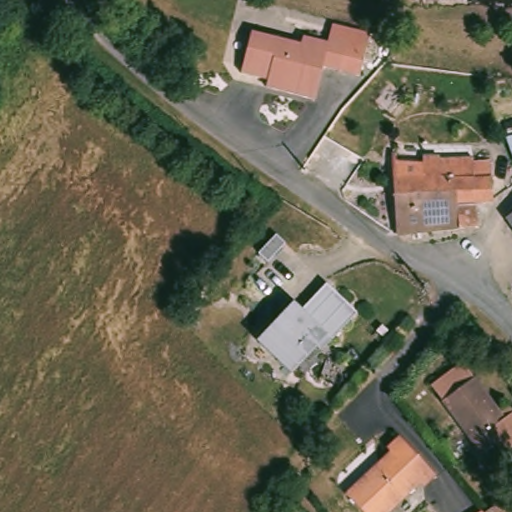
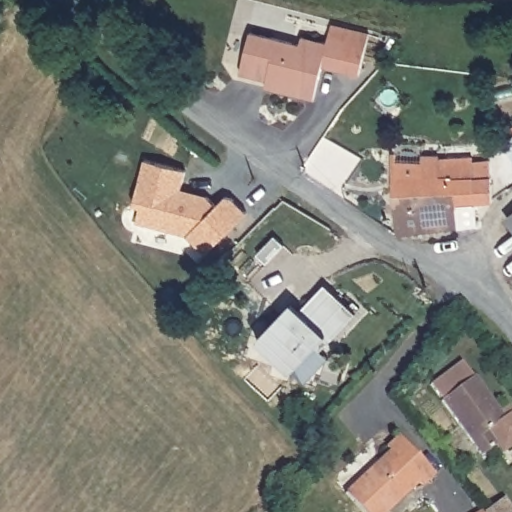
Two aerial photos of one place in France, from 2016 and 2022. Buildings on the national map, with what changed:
unchanged [(304,35),(331,41),(333,32),(337,24),(370,32),(361,71),(342,67),(326,63),(316,99),(272,87),(274,78),(246,71),(255,32),(301,44),(304,35)]
new [(507,136),(504,130),(512,128),(512,152),(507,136)]
unchanged [(478,226),(472,227),(459,229),(398,235),(395,182),(424,178),(422,156),(437,155),(438,156),(470,153),(471,165),(473,179),(491,176),(494,201),(476,204),(478,222),(478,226)]
new [(186,170),(181,189),(207,195),(216,205),(225,197),(233,198),(246,212),(206,253),(187,235),(136,221),(139,208),(131,206),(144,160),(186,170)]
unchanged [(292,302),(299,309),(324,285),(355,313),(326,346),(321,340),(291,372),(255,342),(292,302)]
unchanged [(510,419),(512,417),(512,452),(504,443),(487,455),(446,400),(448,397),(438,382),(468,361),(510,419)]
unchanged [(430,490),(424,483),(395,512),(367,512),(354,499),(396,455),(391,450),(403,438),(442,478),(430,490)]
unchanged [(512,506),(512,512),(493,512),(508,501),(512,506)]

